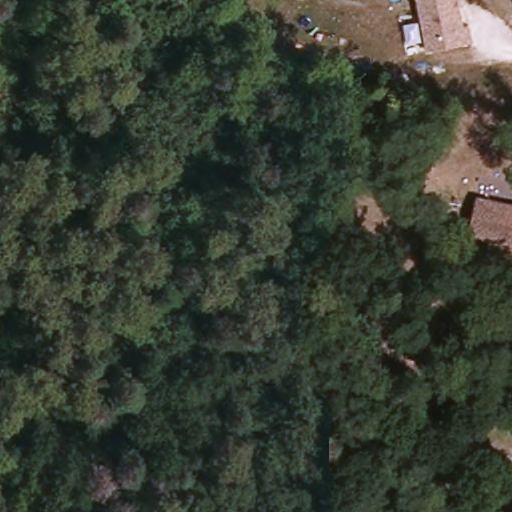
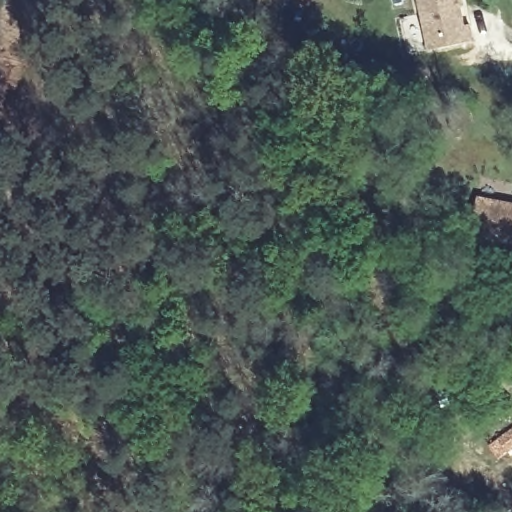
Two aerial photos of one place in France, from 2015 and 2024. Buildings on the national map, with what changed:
unchanged [(418,0),(461,0),(467,24),(472,24),(475,41),(428,52),(418,0)]
unchanged [(472,240),(479,204),(512,209),(512,246),(472,240)]

